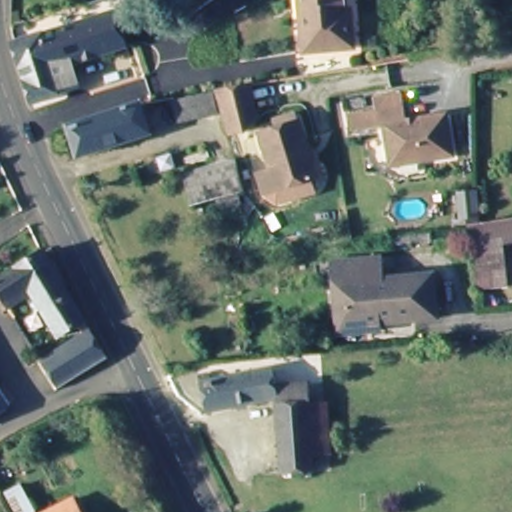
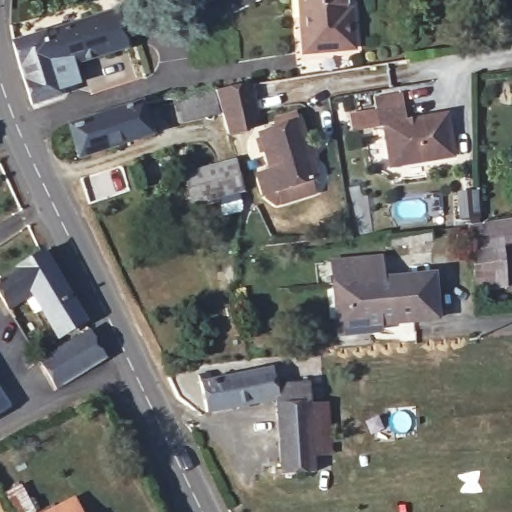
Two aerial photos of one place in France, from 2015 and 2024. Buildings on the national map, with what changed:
unchanged [(307,12),(306,0),(345,0),(346,7),(352,6),(356,42),(305,48),(302,14),(307,12)]
unchanged [(129,8),(132,20),(116,25),(125,50),(70,67),(77,88),(57,94),(58,99),(30,107),(11,45),(129,8)]
unchanged [(260,115),(245,131),(229,135),(223,112),(220,112),(180,120),(177,100),(215,93),(218,92),(218,91),(252,85),(260,115)]
unchanged [(446,119),(453,159),(395,167),(390,129),(358,134),(356,116),(383,112),(382,103),(403,100),(405,109),(407,125),(446,119)]
unchanged [(136,106),(137,105),(147,139),(76,161),(66,129),(136,106)]
unchanged [(281,194),(278,183),(263,187),(257,166),(271,162),(260,125),(280,119),(277,113),(295,107),(297,114),(300,113),(316,171),(311,173),(315,184),(281,194)]
unchanged [(195,200),(186,171),(230,159),(233,157),(240,187),(237,188),(195,200)]
unchanged [(490,231),(512,228),(512,253),(506,254),(475,255),(474,234),(490,231)]
unchanged [(44,252),(86,320),(61,336),(35,294),(9,310),(0,296),(0,279),(44,252)]
unchanged [(495,295),(477,296),(475,255),(506,254),(508,283),(510,293),(495,295)]
unchanged [(332,263),(377,259),(380,282),(430,278),(435,321),(376,326),(377,334),(338,336),(334,286),(332,263)]
unchanged [(92,330),(110,357),(60,390),(42,362),(92,330)]
unchanged [(315,475),(282,476),(277,406),(280,405),(280,400),(207,415),(200,377),(211,375),(212,381),(272,370),(278,389),(308,387),(310,406),(313,460),(315,475)]
unchanged [(10,407),(0,413),(0,393),(10,407)]
unchanged [(310,406),(328,405),(331,438),(332,459),(313,460),(310,406)]
unchanged [(8,493),(25,483),(41,512),(19,512),(8,493)]
unchanged [(75,500),(81,512),(51,512),(75,500)]

